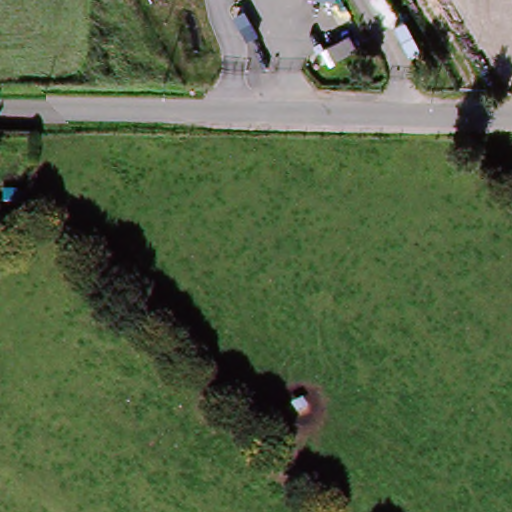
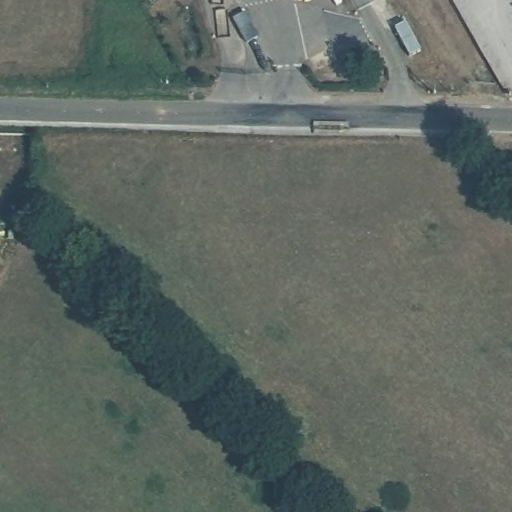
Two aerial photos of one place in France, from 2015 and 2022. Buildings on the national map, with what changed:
unchanged [(239,12),(253,38),(241,44),(228,19),(239,12)]
unchanged [(346,40),(353,53),(331,64),(323,50),(346,40)]

